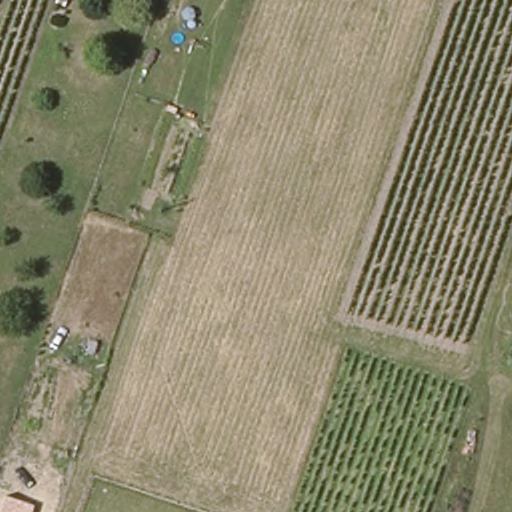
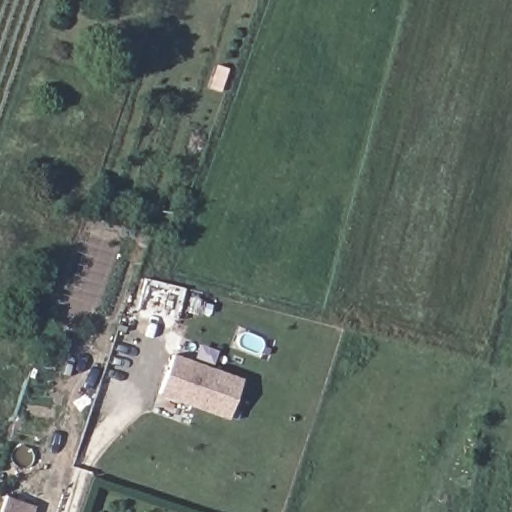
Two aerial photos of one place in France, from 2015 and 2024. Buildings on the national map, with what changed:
new [(158,395),(173,353),(242,378),(227,420),(158,395)]

